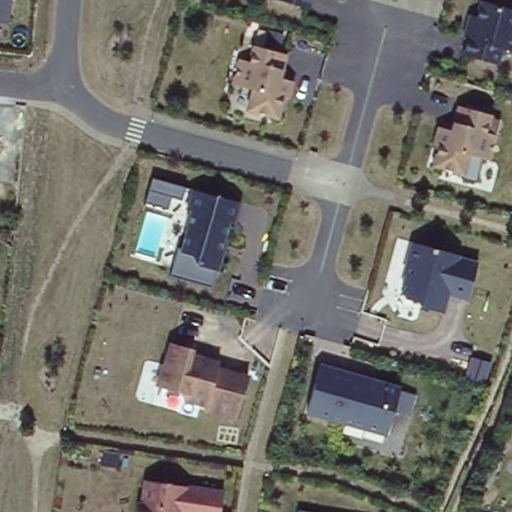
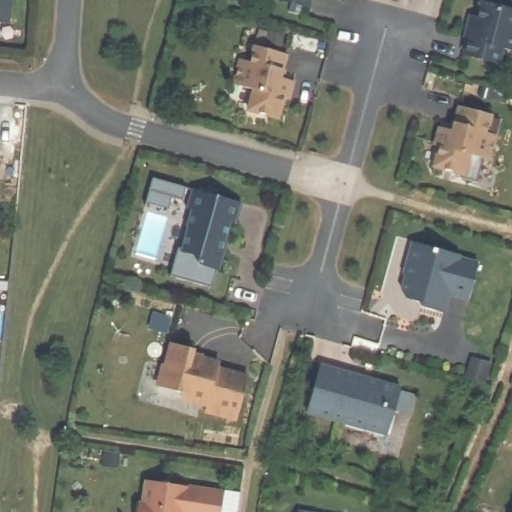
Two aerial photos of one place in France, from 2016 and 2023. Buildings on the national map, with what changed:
unchanged [(9,22),(0,21),(0,0),(10,0),(9,22)]
unchanged [(310,7),(280,1),(281,0),(311,0),(310,7)]
unchanged [(475,5),(512,15),(512,53),(499,51),(496,64),(463,54),(475,5)]
unchanged [(289,59),(283,81),(290,85),(279,123),(247,112),(252,89),(234,86),(241,62),(246,65),(253,46),(289,59)]
unchanged [(437,127),(444,130),(459,110),(487,120),(482,134),(492,142),(484,162),(469,159),(459,179),(432,166),(437,127)]
unchanged [(178,251),(192,190),(234,201),(216,271),(178,251)]
unchanged [(411,244),(476,261),(467,299),(451,296),(444,312),(399,294),(411,244)]
unchanged [(169,341),(193,345),(192,355),(243,377),(234,422),(204,417),(204,410),(179,405),(179,391),(160,385),(169,341)]
unchanged [(320,364),(396,391),(385,436),(306,415),(320,364)]
unchanged [(215,512),(138,512),(142,481),(218,492),(215,512)]
unchanged [(297,512),(297,509),(313,512),(297,512)]

